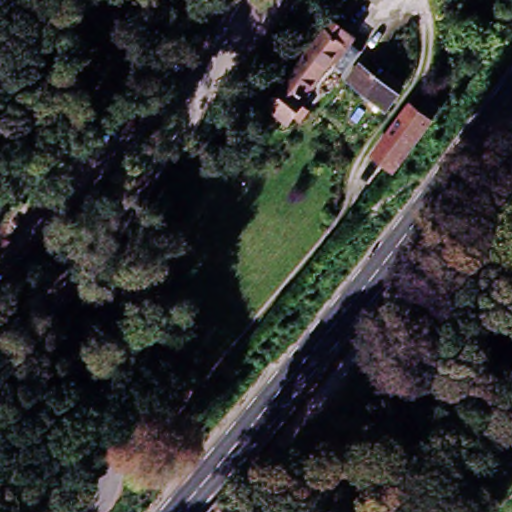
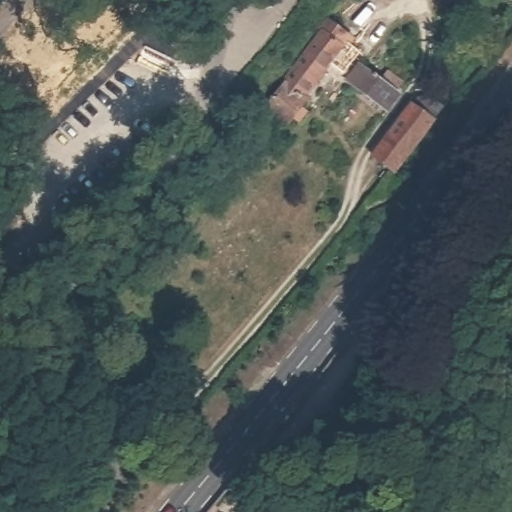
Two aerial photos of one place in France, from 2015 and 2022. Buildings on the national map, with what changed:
unchanged [(298,126),(276,106),(290,91),(282,85),(331,25),(332,26),(347,37),(341,45),(346,48),(306,96),(316,104),(298,126)]
unchanged [(399,95),(386,111),(346,80),(358,63),(399,95)]
unchanged [(372,161),(415,106),(425,95),(447,113),(437,124),(393,179),(372,161)]

